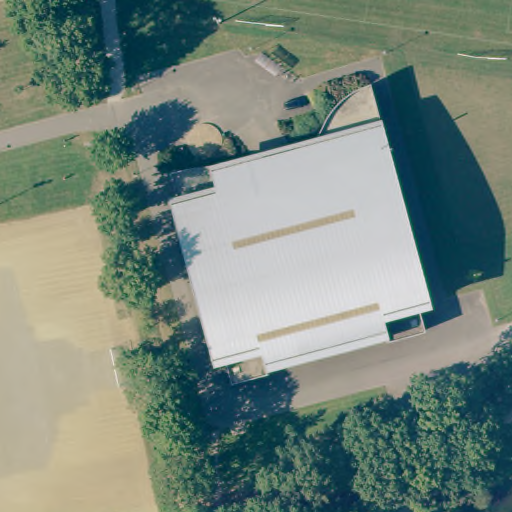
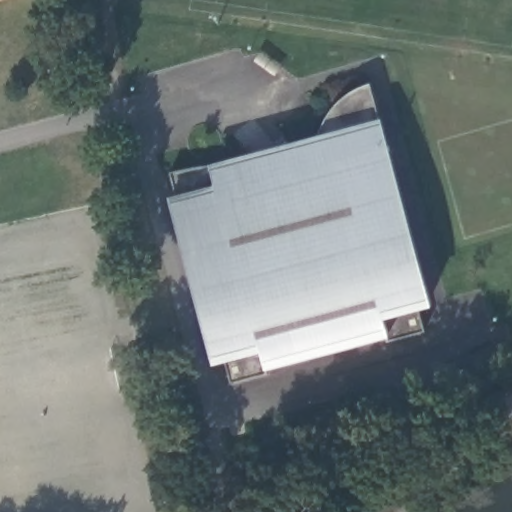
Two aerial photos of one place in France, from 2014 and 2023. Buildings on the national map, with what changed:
unchanged [(419,305),(426,329),(388,340),(386,334),(266,369),(267,372),(232,382),(224,358),(214,361),(174,223),(184,220),(171,173),(212,165),(237,164),(240,167),(299,151),(310,144),(319,133),(327,119),(339,104),(360,88),(363,95),(374,101),(383,129),(379,130),(384,146),(388,146),(431,301),(419,305)]

